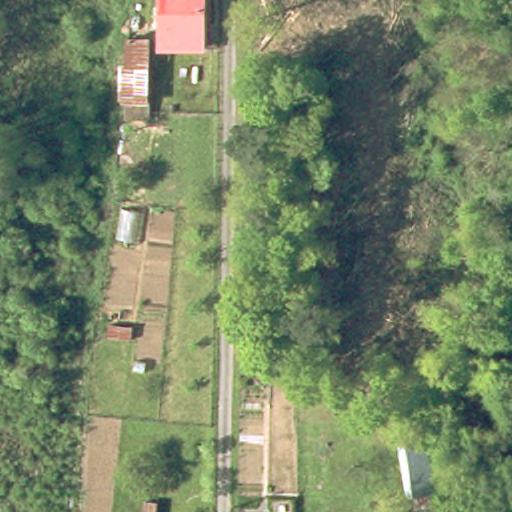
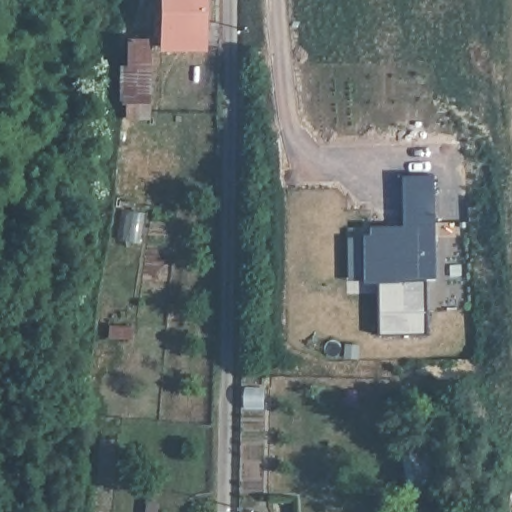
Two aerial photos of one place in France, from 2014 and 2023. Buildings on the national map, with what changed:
unchanged [(211,23),(207,23),(207,41),(211,41),(211,43),(171,43),(171,0),(211,0),(211,23)]
unchanged [(135,32),(158,33),(156,96),(127,95),(128,59),(134,60),(135,32)]
new [(434,263),(415,263),(415,280),(424,279),(424,333),(377,334),(376,282),(347,283),(346,237),(368,235),(368,226),(401,225),(400,176),(432,175),(434,263)]
unchanged [(449,489),(425,490),(418,435),(442,434),(449,489)]
demolished [(160,512),(163,479),(173,480),(170,512),(160,512)]

